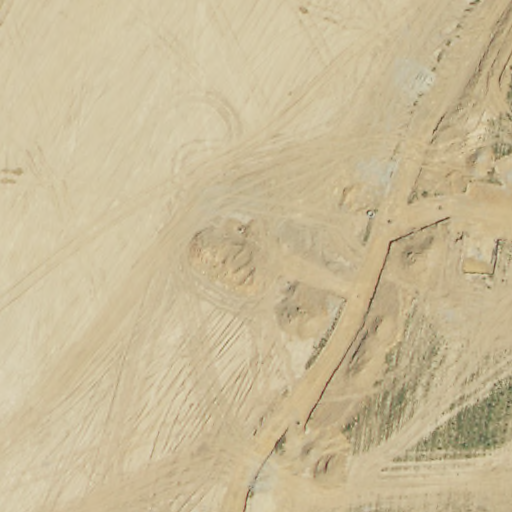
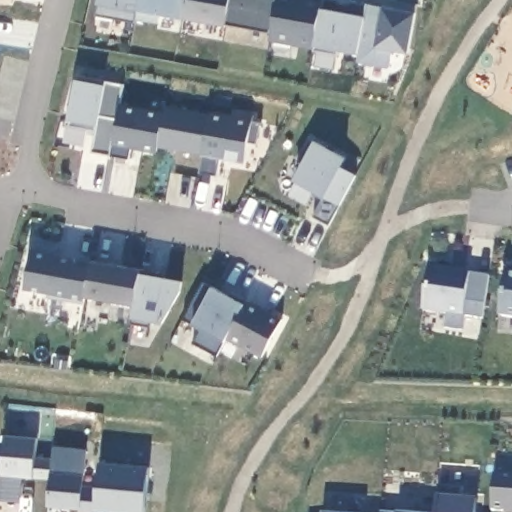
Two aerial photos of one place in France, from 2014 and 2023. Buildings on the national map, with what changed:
new [(140,0),(138,13),(136,24),(97,16),(98,4),(99,0),(140,0)]
new [(348,0),(397,9),(398,0),(418,4),(419,12),(410,54),(397,53),(389,68),(357,61),(358,55),(316,47),(316,50),(268,42),(270,31),(226,24),(226,26),(185,18),(184,20),(138,13),(140,0),(348,0)]
new [(73,80),(78,81),(106,87),(104,81),(125,85),(111,155),(92,151),(96,131),(69,126),(73,121),(66,119),(73,80)]
new [(162,111),(164,104),(211,114),(203,156),(160,147),(158,154),(133,149),(131,158),(111,155),(121,103),(162,111)]
new [(235,118),(236,111),(255,115),(253,123),(262,124),(257,144),(250,142),(247,165),(221,159),(218,177),(200,173),(211,114),(235,118)]
new [(313,217),(327,199),(325,198),(294,181),(316,143),(346,159),(341,168),(356,175),(340,206),(329,226),(313,217)]
new [(56,248),(55,255),(75,260),(74,264),(91,266),(83,303),(48,297),(49,294),(26,290),(35,244),(56,248)]
new [(93,261),(140,268),(141,275),(135,306),(85,295),(91,266),(93,261)]
new [(471,274),(489,275),(483,319),(465,317),(464,330),(445,328),(448,314),(423,310),(431,268),(471,274)]
unchanged [(512,318),(499,316),(506,274),(512,274),(512,318)]
new [(185,282),(183,294),(163,325),(152,323),(150,327),(132,324),(135,319),(132,318),(141,275),(185,282)]
new [(228,339),(224,342),(219,357),(195,343),(204,330),(195,323),(214,288),(246,304),(245,307),(228,339)]
new [(263,358),(228,339),(248,303),(283,320),(263,358)]
new [(3,463),(4,436),(37,438),(35,458),(51,459),(52,447),(85,449),(84,460),(101,462),(150,466),(146,512),(120,512),(116,512),(115,512),(80,512),(81,510),(47,507),(50,479),(35,478),(1,475),(0,491),(0,462),(3,463)]
new [(501,511),(493,511),(494,474),(512,475),(512,512),(501,512),(501,511)]
new [(438,496),(439,488),(463,489),(463,499),(477,500),(476,512),(435,512),(438,496)]

